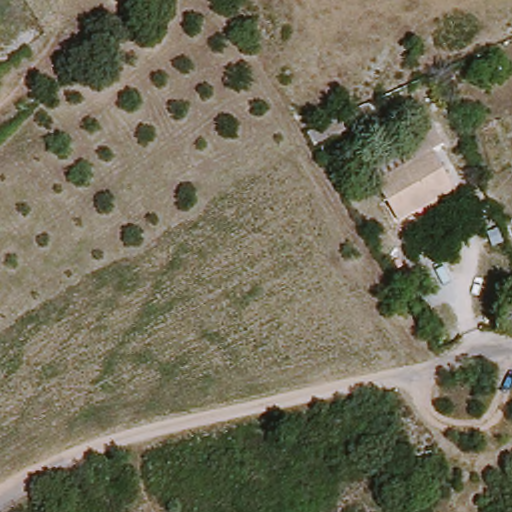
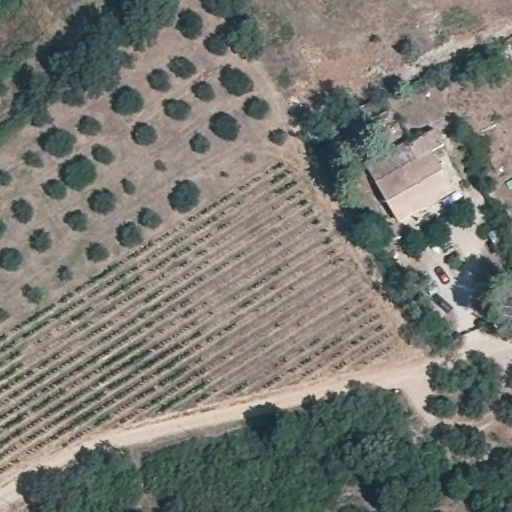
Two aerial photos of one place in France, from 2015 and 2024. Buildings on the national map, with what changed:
unchanged [(321,137),(312,141),(307,131),(315,127),(321,137)]
unchanged [(407,150),(435,138),(442,152),(437,155),(429,158),(445,197),(392,220),(375,178),(412,163),(407,150)]

